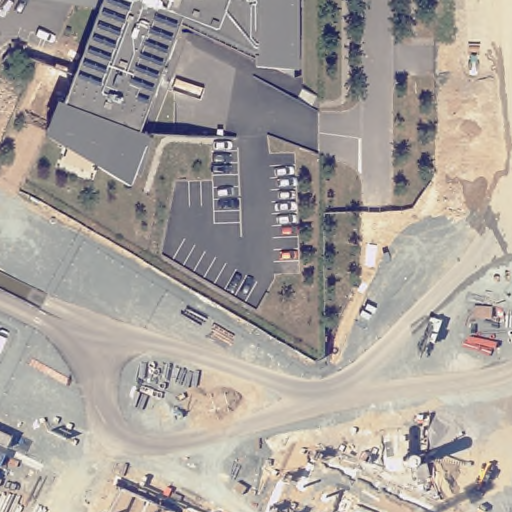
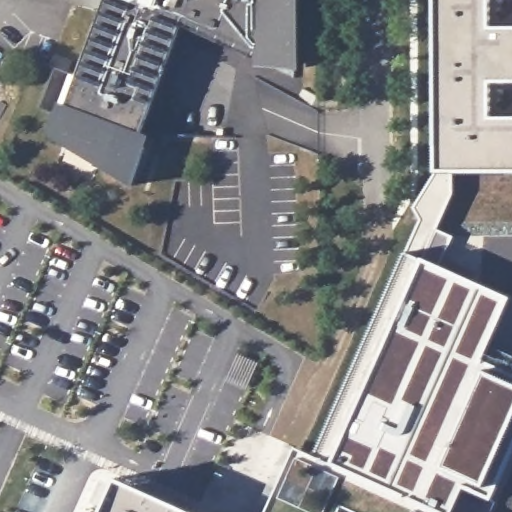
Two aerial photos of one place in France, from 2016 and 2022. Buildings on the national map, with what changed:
unchanged [(44,133),(53,110),(70,116),(73,108),(62,104),(102,0),(293,0),(293,74),(280,68),(269,63),(256,63),(256,56),(207,34),(180,21),(178,21),(174,31),(176,33),(136,141),(144,144),(130,183),(97,163),(99,157),(63,141),(62,143),(44,133)]
new [(450,196),(435,230),(449,236),(434,262),(512,296),(512,298),(483,359),(512,372),(512,457),(492,502),(461,488),(450,512),(441,512),(314,455),(402,251),(416,223),(410,209),(434,172),(432,0),(512,0),(512,173),(445,174),(450,196)]
unchanged [(296,447),(441,512),(359,512),(342,504),(339,512),(266,512),(296,447)]
unchanged [(117,478),(194,512),(102,512),(117,478)]

